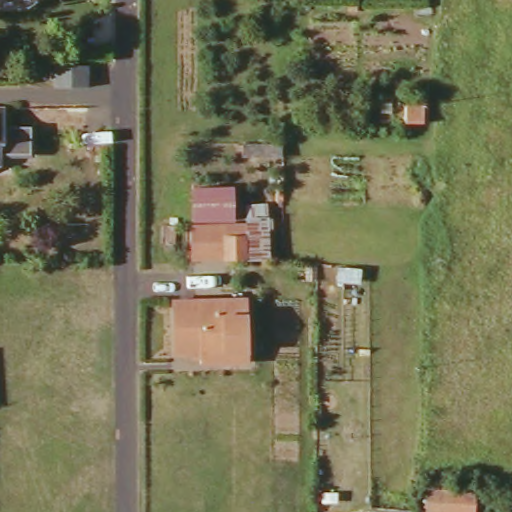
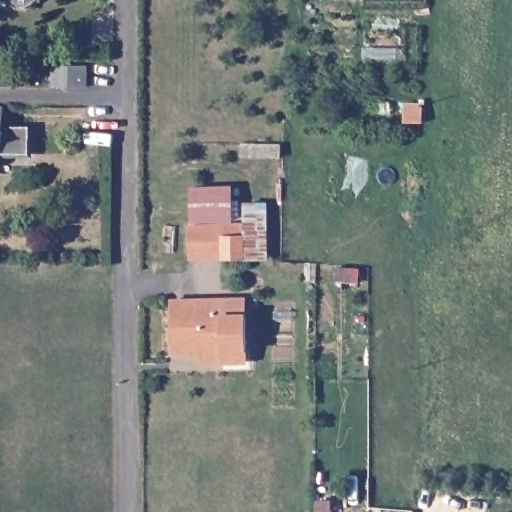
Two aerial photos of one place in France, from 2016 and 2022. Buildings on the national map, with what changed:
unchanged [(62,61),(92,62),(92,84),(60,84),(60,82),(62,61)]
unchanged [(29,148),(27,152),(0,152),(0,126),(30,126),(29,148)]
unchanged [(192,223),(191,190),(233,189),(233,223),(223,223),(194,223),(192,223)]
unchanged [(222,259),(188,261),(189,223),(192,223),(194,223),(223,223),(220,238),(240,239),(242,218),(240,203),(265,204),(264,217),(269,217),(269,260),(222,259)]
unchanged [(227,364),(202,364),(202,355),(177,355),(177,302),(249,300),(250,352),(250,363),(227,364)]

